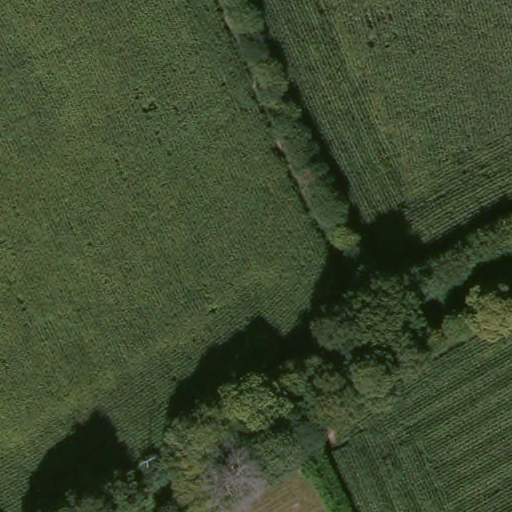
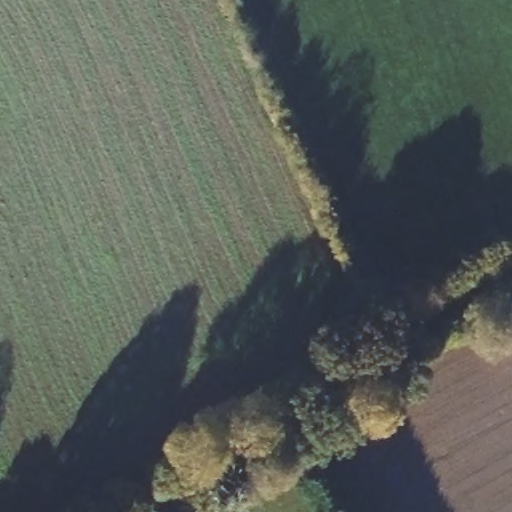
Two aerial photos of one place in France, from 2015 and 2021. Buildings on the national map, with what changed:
unchanged [(225,512),(193,512),(214,497),(225,512)]

